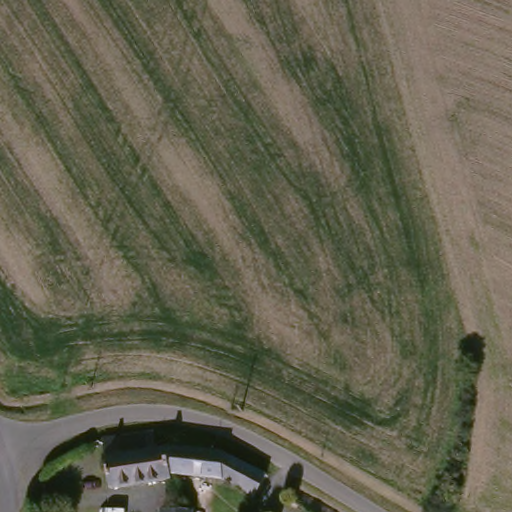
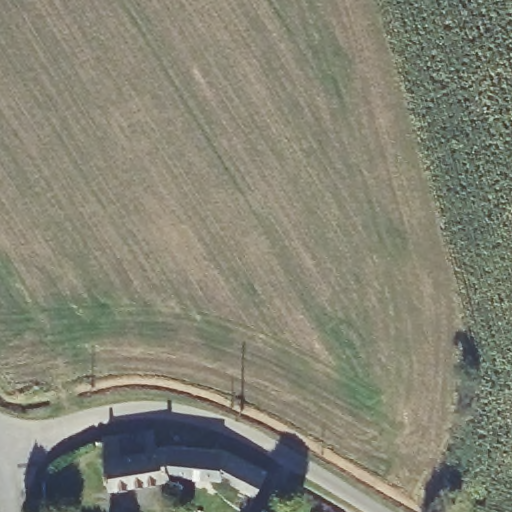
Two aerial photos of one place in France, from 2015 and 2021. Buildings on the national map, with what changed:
unchanged [(159,475),(111,482),(106,456),(102,435),(153,428),(154,442),(159,475)]
unchanged [(254,490),(222,474),(172,470),(170,473),(159,475),(154,442),(223,447),(265,469),(264,474),(254,490)]
unchanged [(161,512),(164,509),(192,510),(192,512),(161,512)]

